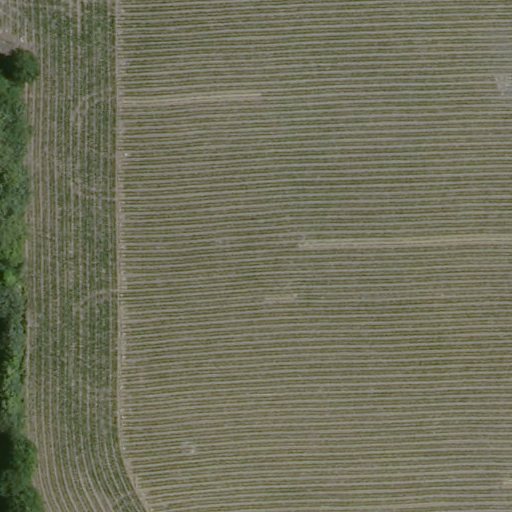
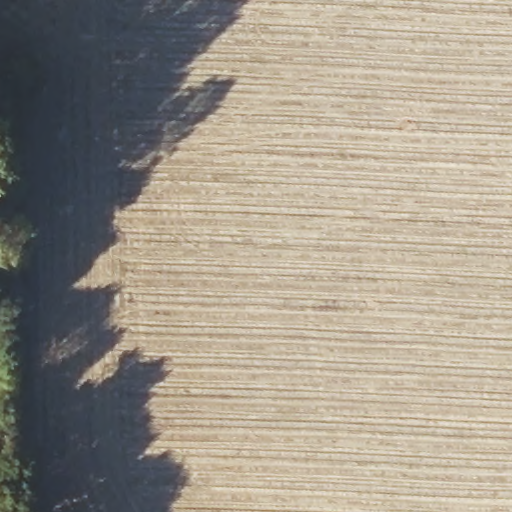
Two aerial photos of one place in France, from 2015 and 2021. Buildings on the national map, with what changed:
[]

